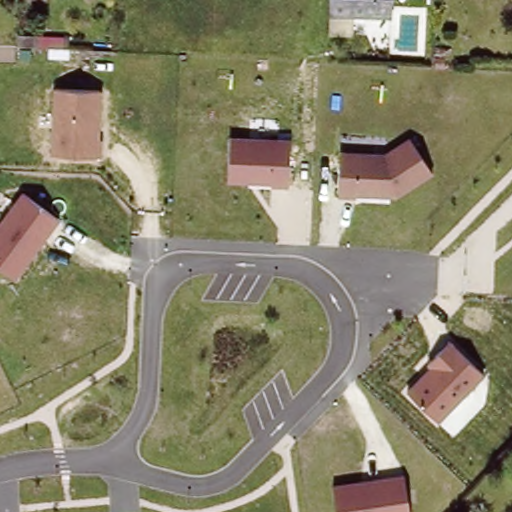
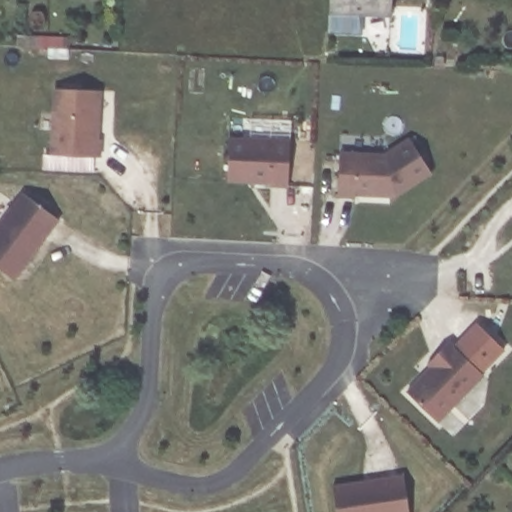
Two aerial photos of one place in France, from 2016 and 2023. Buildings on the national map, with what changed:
unchanged [(331,0),(392,0),(391,18),(331,15),(331,0)]
new [(68,49),(37,47),(17,46),(17,36),(38,37),(68,39),(68,49)]
unchanged [(54,87),(101,89),(99,156),(51,155),(54,87)]
unchanged [(230,137),(291,141),(288,186),(227,180),(230,137)]
unchanged [(341,152),(384,155),(409,137),(433,175),(396,199),(339,195),(341,152)]
unchanged [(0,266),(0,221),(23,190),(59,217),(16,278),(0,266)]
new [(476,323),(505,350),(483,373),(454,345),(476,323)]
unchanged [(406,391),(453,342),(484,375),(438,421),(406,391)]
unchanged [(404,475),(409,512),(338,512),(335,485),(404,475)]

